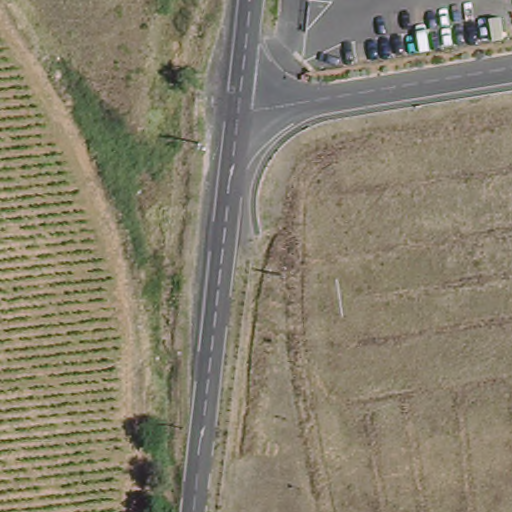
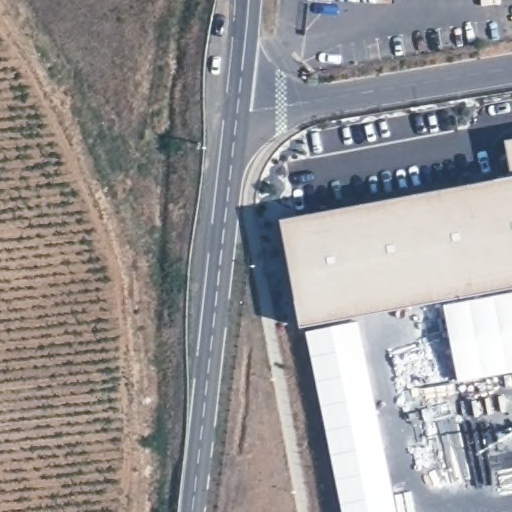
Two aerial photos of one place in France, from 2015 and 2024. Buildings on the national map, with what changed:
new [(507,141),(512,140),(512,289),(302,327),(282,220),(510,177),(507,141)]
new [(459,381),(444,306),(512,292),(512,372),(459,381)]
new [(397,512),(342,512),(306,332),(358,321),(397,512)]

